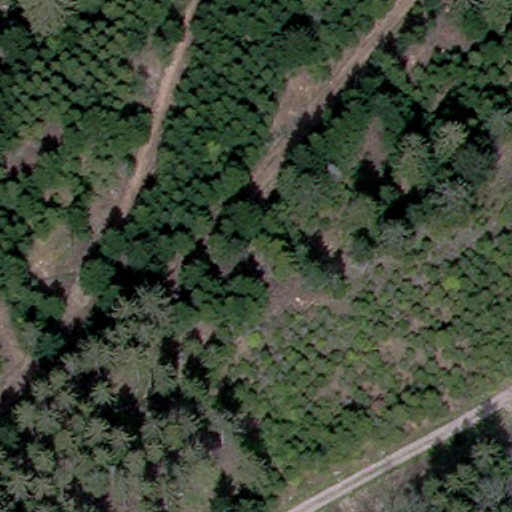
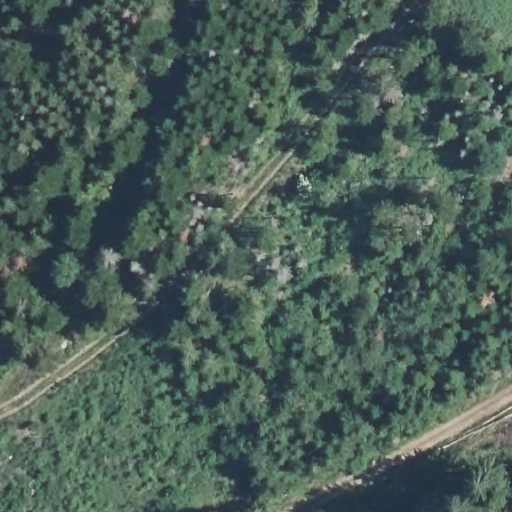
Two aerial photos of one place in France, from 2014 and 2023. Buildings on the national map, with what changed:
[]

